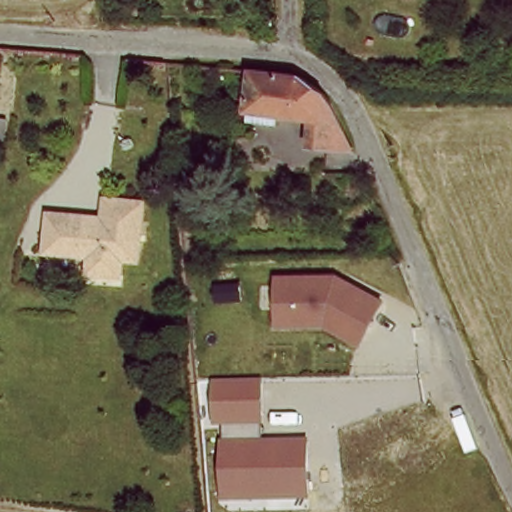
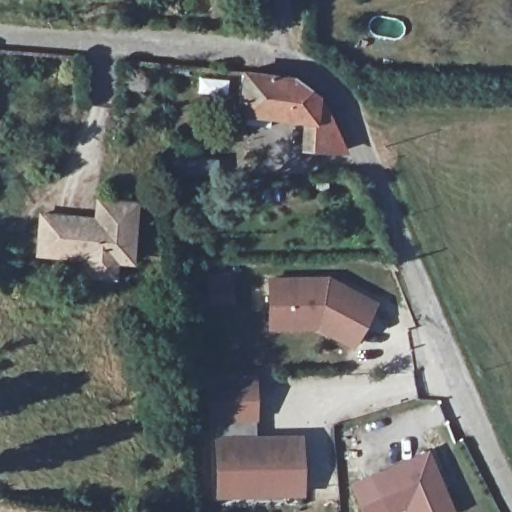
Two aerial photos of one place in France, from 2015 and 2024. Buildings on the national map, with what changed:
unchanged [(240,119),(241,105),(243,68),(286,71),(301,78),(309,84),(323,96),(345,143),(302,141),(303,114),(275,110),(275,123),(240,119)]
unchanged [(98,219),(100,198),(140,203),(135,263),(119,261),(119,275),(80,270),(80,260),(33,254),(38,214),(98,219)]
unchanged [(354,352),(315,329),(271,331),(269,278),(329,277),(379,303),(354,352)]
unchanged [(256,419),(262,419),(263,439),(297,439),(298,496),(281,496),(281,480),(253,481),(253,496),(218,496),(215,438),(227,437),(228,420),(210,420),(208,377),(258,377),(256,419)]
new [(406,512),(405,510),(398,512),(386,512),(371,474),(429,451),(454,512),(406,512)]

